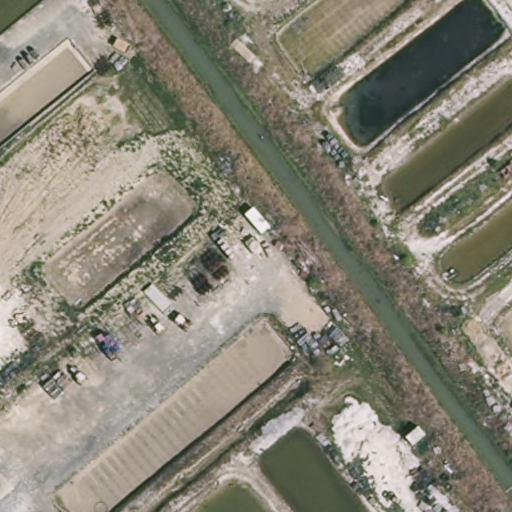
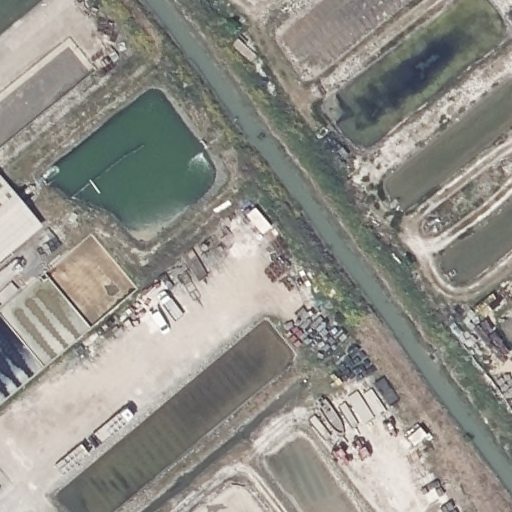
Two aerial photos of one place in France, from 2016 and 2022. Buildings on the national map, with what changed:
new [(0,259),(0,177),(42,225),(0,259)]
demolished [(319,267),(326,278),(322,283),(331,295),(307,313),(290,292),(319,267)]

